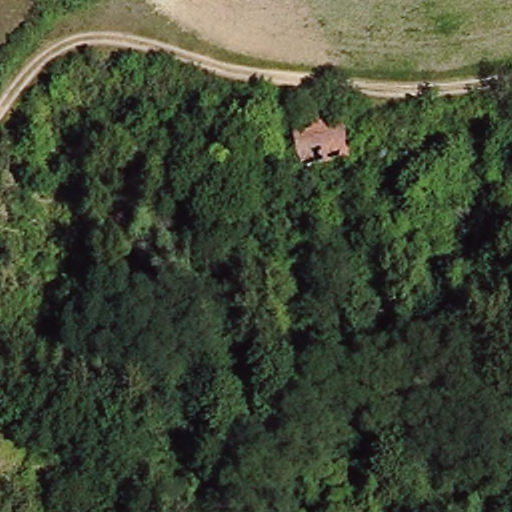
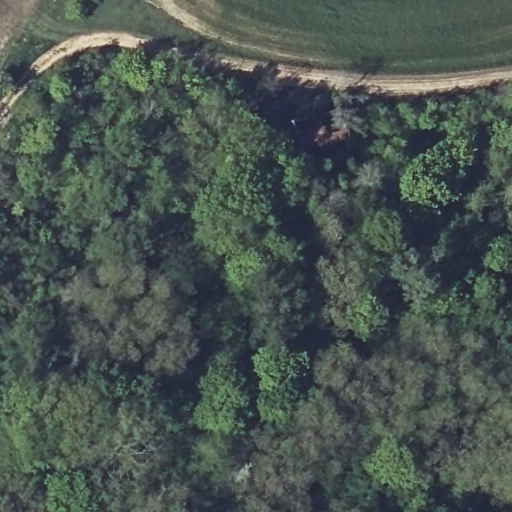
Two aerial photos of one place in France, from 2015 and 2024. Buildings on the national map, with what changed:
unchanged [(285,125),(331,113),(343,159),(296,170),(285,125)]

